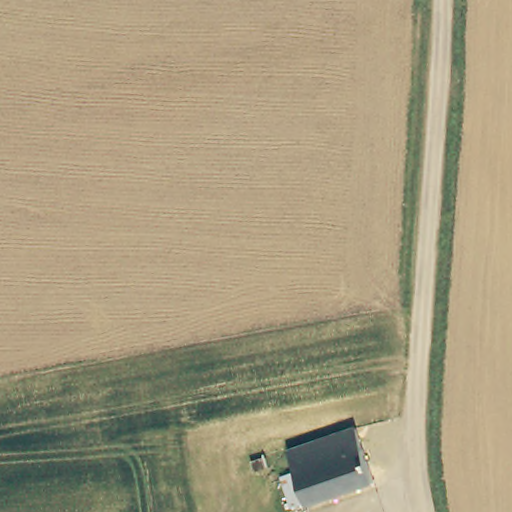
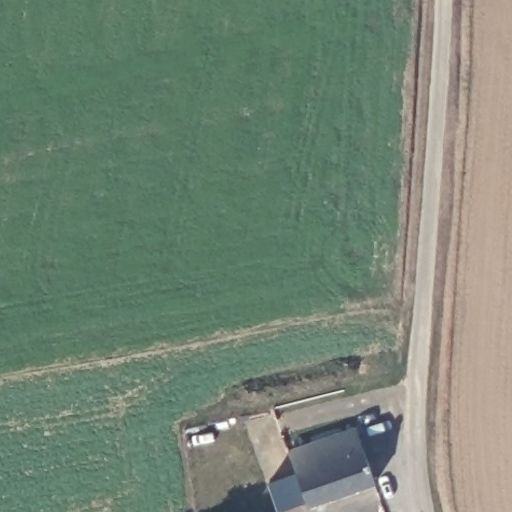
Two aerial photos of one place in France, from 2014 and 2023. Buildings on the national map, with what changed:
unchanged [(312,507),(294,455),(360,427),(379,482),(312,507)]

